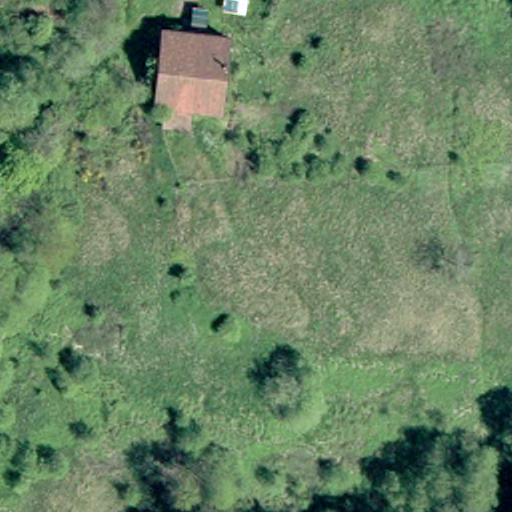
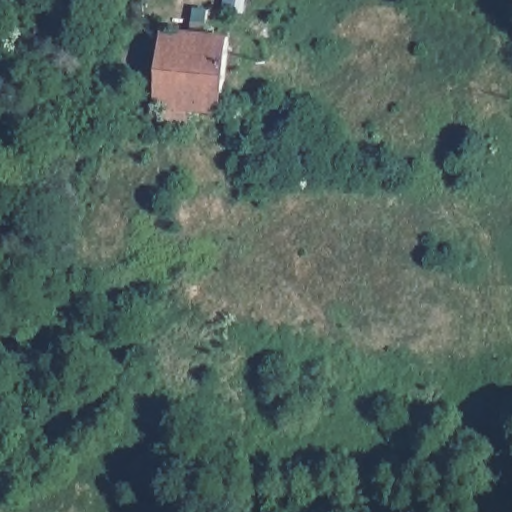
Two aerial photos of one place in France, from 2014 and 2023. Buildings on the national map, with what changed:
unchanged [(232,37),(228,110),(190,107),(186,131),(185,131),(166,129),(169,105),(161,104),(166,55),(158,54),(160,32),(232,37)]

